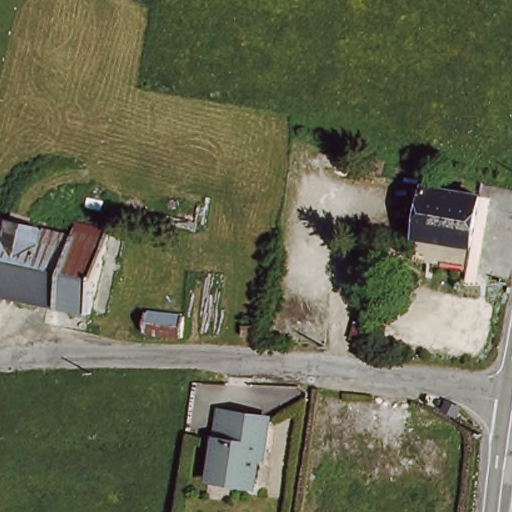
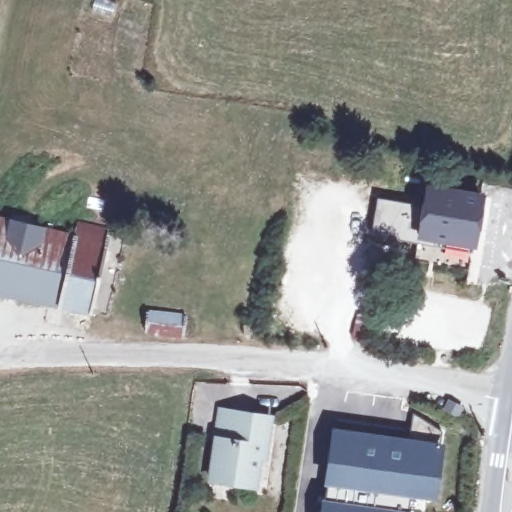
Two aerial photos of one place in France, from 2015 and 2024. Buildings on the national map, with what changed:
unchanged [(482,194),(475,242),(422,234),(429,185),(482,194)]
unchanged [(84,234),(87,221),(114,228),(98,296),(95,311),(0,291),(0,215),(56,228),(84,234)]
unchanged [(179,320),(175,340),(146,333),(150,314),(179,320)]
unchanged [(257,339),(239,338),(240,324),(259,326),(257,339)]
unchanged [(277,418),(272,449),(265,448),(261,488),(217,482),(225,412),(277,418)]
new [(330,424),(442,441),(434,500),(367,492),(367,495),(362,495),(361,501),(324,496),(325,486),(322,485),(330,424)]
new [(324,496),(361,501),(417,512),(318,512),(320,496),(324,496)]

